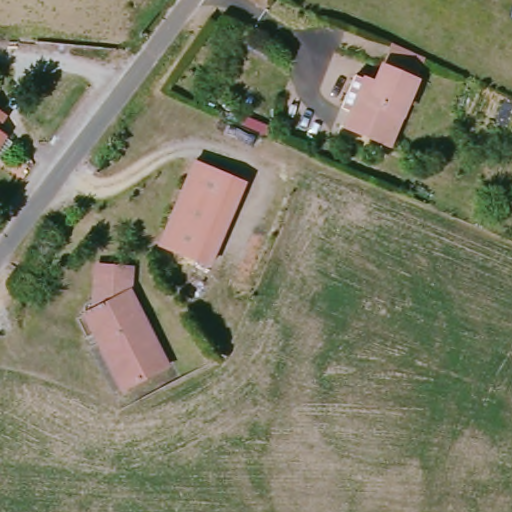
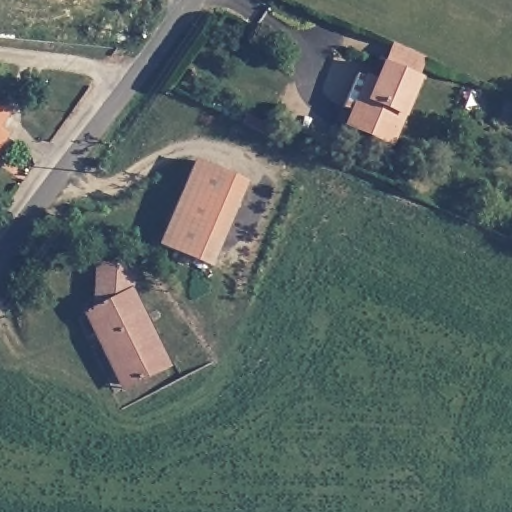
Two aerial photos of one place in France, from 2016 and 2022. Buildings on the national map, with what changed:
unchanged [(421,61),(414,79),(417,81),(388,148),(345,130),(350,115),(342,111),(356,78),(372,87),(378,72),(384,68),(392,49),(421,61)]
unchanged [(247,185),(210,270),(156,248),(192,162),(247,185)]
unchanged [(94,338),(83,316),(92,310),(98,267),(132,272),(129,291),(167,364),(128,388),(121,392),(94,338)]

